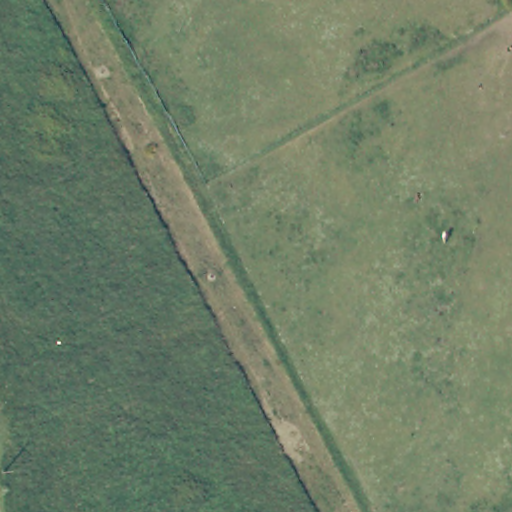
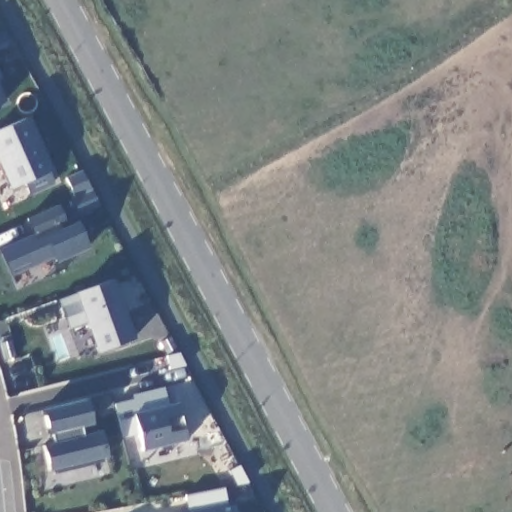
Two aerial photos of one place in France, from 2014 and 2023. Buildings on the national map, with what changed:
new [(0,104),(0,96),(3,103),(0,104)]
new [(46,172),(55,185),(30,196),(27,182),(9,189),(0,168),(0,130),(28,119),(53,170),(46,172)]
new [(22,218),(54,205),(65,224),(74,221),(89,250),(54,262),(53,258),(9,276),(0,255),(0,246),(29,234),(22,218)]
new [(134,340),(98,355),(86,323),(69,330),(59,301),(75,292),(110,280),(134,340)]
new [(114,404),(133,400),(132,395),(163,388),(166,405),(177,403),(185,441),(142,452),(136,432),(122,440),(114,404)]
new [(93,425),(80,428),(83,435),(100,431),(106,457),(49,470),(41,446),(52,443),(43,411),(86,400),(93,425)]
new [(224,488),(227,506),(234,504),(236,512),(187,512),(184,496),(224,488)]

